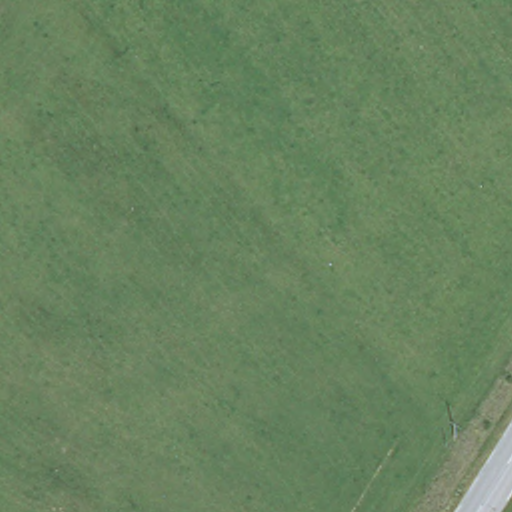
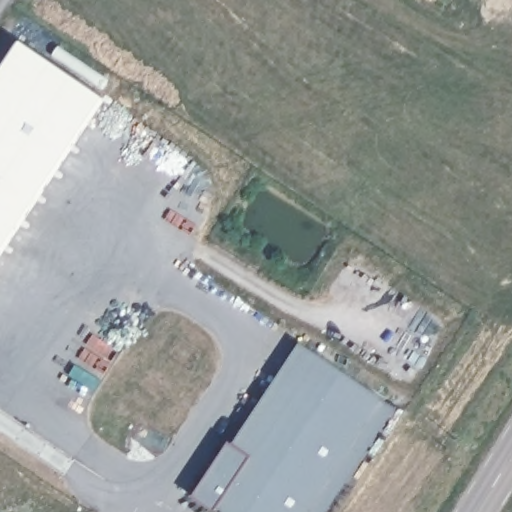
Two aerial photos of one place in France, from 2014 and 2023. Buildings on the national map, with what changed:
new [(106,98),(0,257),(0,70),(20,40),(106,98)]
new [(299,342),(398,406),(326,512),(228,512),(217,505),(214,510),(193,495),(230,440),(233,442),(299,342)]

